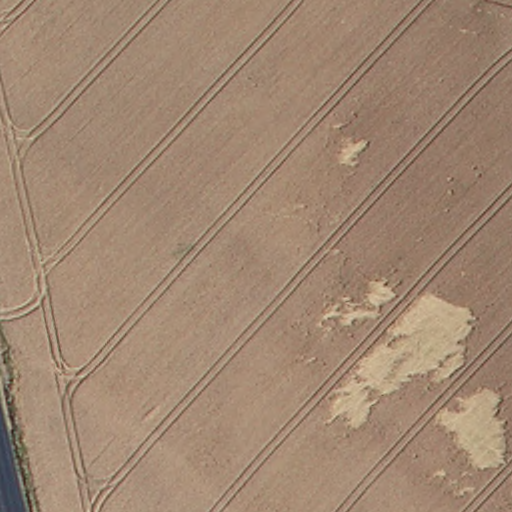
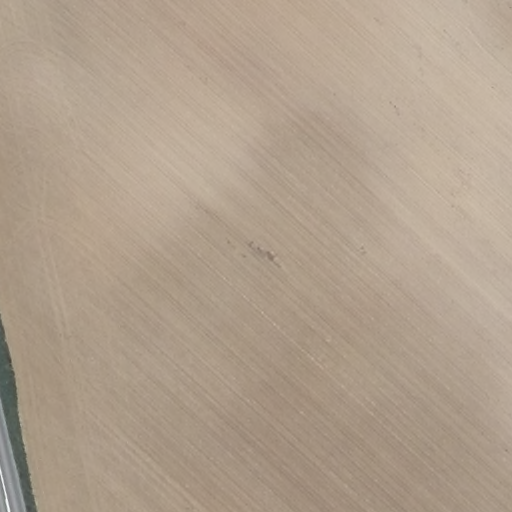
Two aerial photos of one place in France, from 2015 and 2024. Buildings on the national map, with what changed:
[]

